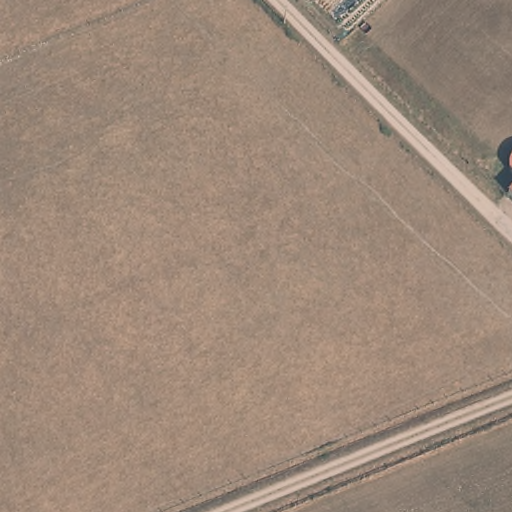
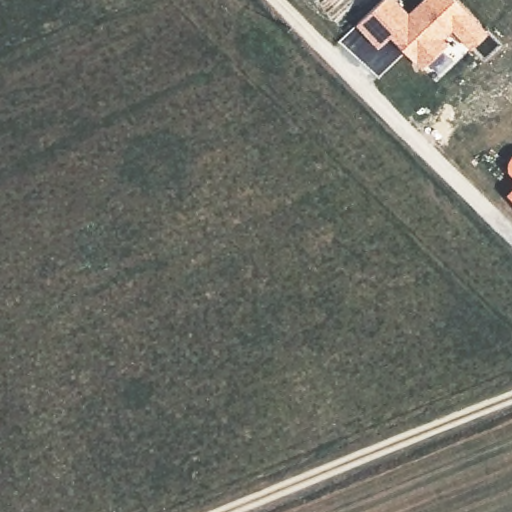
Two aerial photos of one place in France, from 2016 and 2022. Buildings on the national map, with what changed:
new [(399,0),(409,11),(420,0),(429,0),(454,26),(442,39),(448,45),(423,69),(389,38),(379,49),(356,25),(382,0),(399,0)]

